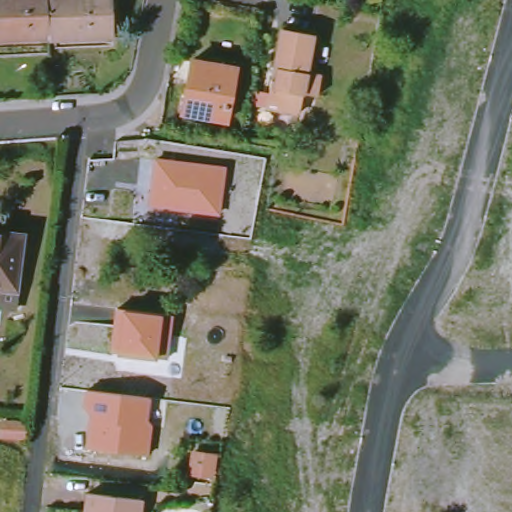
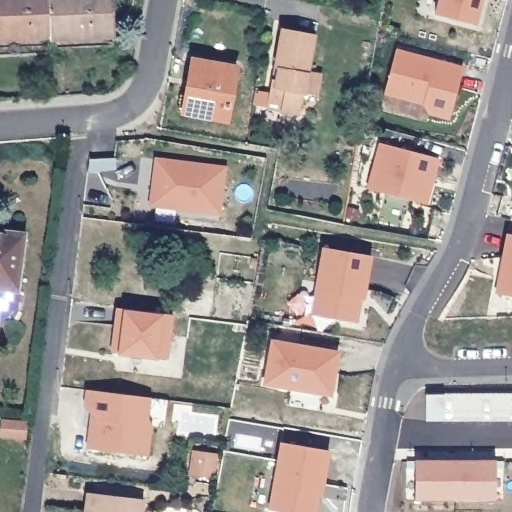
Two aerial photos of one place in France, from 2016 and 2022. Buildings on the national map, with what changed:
unchanged [(0,38),(0,0),(50,0),(50,14),(51,37),(0,38)]
unchanged [(50,14),(50,0),(110,0),(111,36),(52,39),(51,37),(50,14)]
new [(481,0),(475,23),(435,13),(439,0),(481,0)]
unchanged [(321,75),(317,95),(302,92),(298,112),(280,109),(280,102),(267,99),(270,79),(275,80),(277,68),(275,67),(282,27),(313,32),(306,71),(322,74),(321,75)]
new [(395,49),(462,67),(449,117),(429,112),(423,102),(384,92),(395,49)]
unchanged [(183,113),(192,59),(235,67),(226,121),(183,113)]
new [(380,142),(438,157),(433,175),(430,175),(423,202),(367,187),(380,142)]
new [(222,219),(147,207),(153,159),(226,169),(222,219)]
new [(496,295),(505,236),(512,237),(512,298),(496,295)]
unchanged [(0,237),(23,240),(16,297),(0,295),(0,237)]
new [(323,246),(370,255),(365,288),(362,288),(356,321),(334,317),(312,313),(314,299),(323,246)]
new [(167,368),(115,365),(122,313),(172,320),(167,368)]
new [(272,340),(338,351),(331,390),(308,386),(308,390),(265,382),(272,340)]
unchanged [(152,400),(149,420),(153,424),(149,457),(85,451),(89,414),(82,407),(84,392),(152,400)]
new [(330,450),(324,485),(321,485),(316,512),(281,512),(270,510),(282,442),(330,450)]
unchanged [(223,456),(220,479),(193,476),(197,451),(223,456)]
new [(417,500),(415,462),(495,460),(496,499),(417,500)]
unchanged [(92,496),(147,503),(146,512),(90,512),(92,496)]

